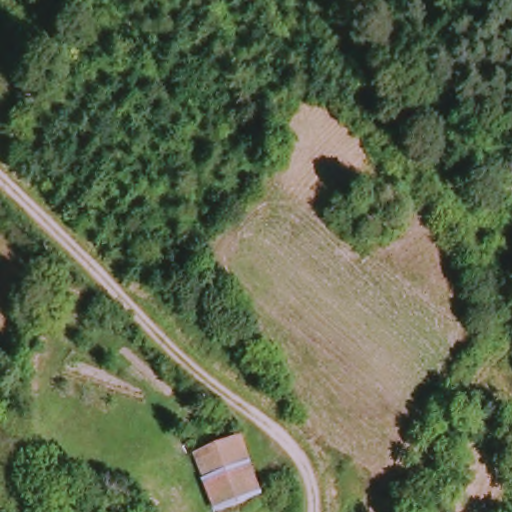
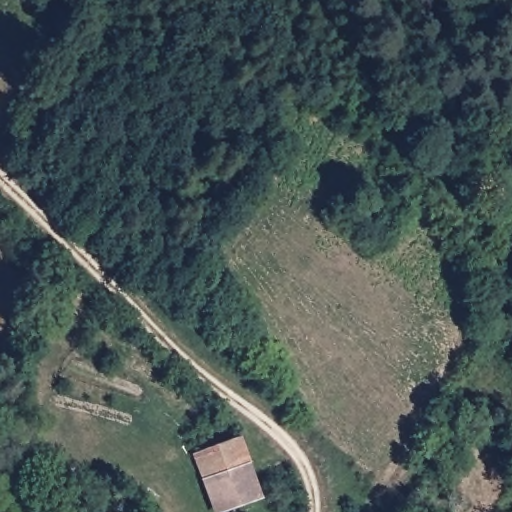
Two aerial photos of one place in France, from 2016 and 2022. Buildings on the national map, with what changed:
unchanged [(265,487),(267,500),(229,512),(220,512),(202,465),(247,447),(265,487)]

